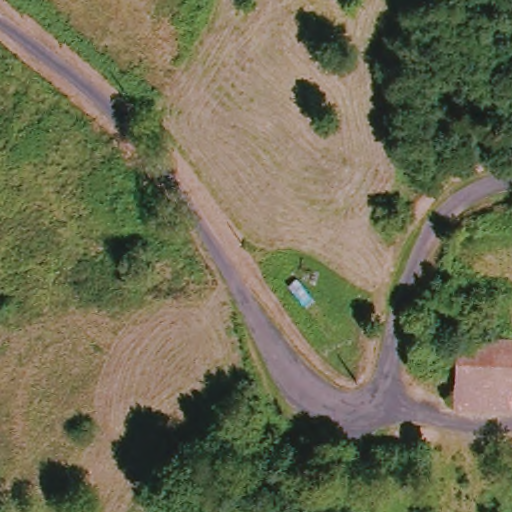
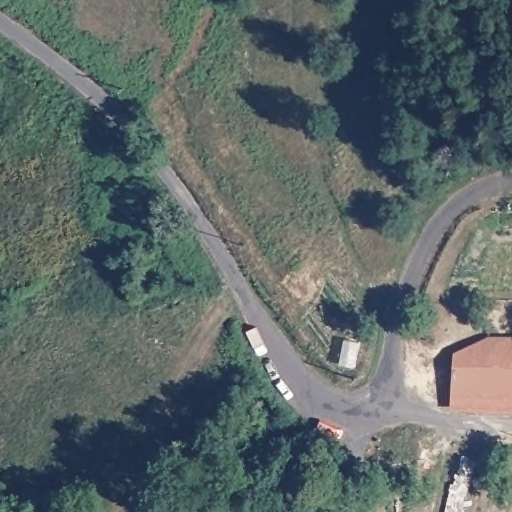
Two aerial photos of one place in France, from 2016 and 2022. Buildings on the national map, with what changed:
unchanged [(491,409),(492,364),(502,361),(502,347),(512,346),(512,409),(491,409)]
unchanged [(455,409),(459,356),(479,349),(502,347),(502,361),(492,364),(491,409),(455,409)]

